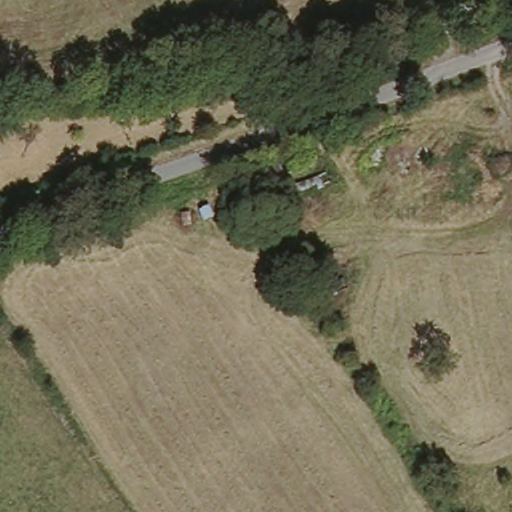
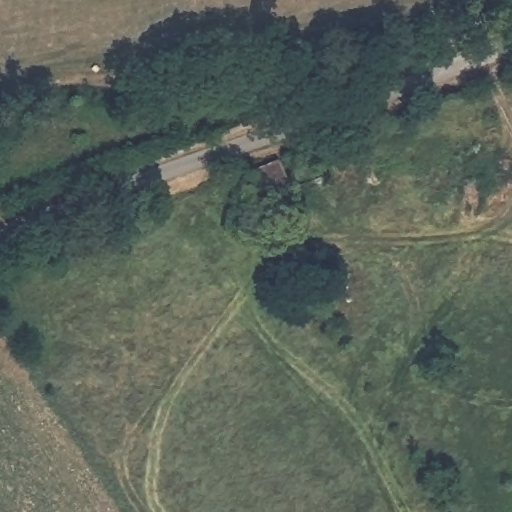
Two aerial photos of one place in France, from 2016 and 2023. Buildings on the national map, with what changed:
unchanged [(264,167),(270,184),(251,191),(243,175),(264,167)]

